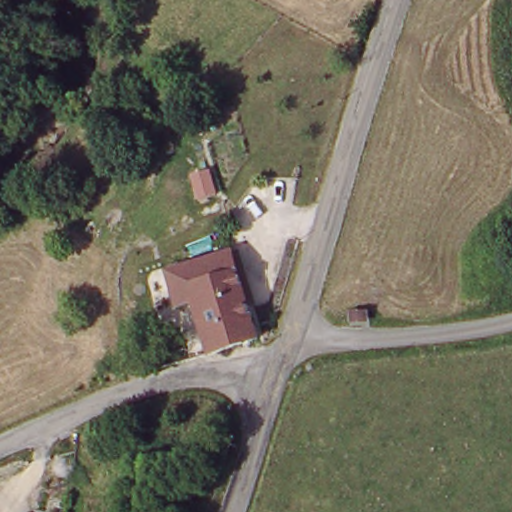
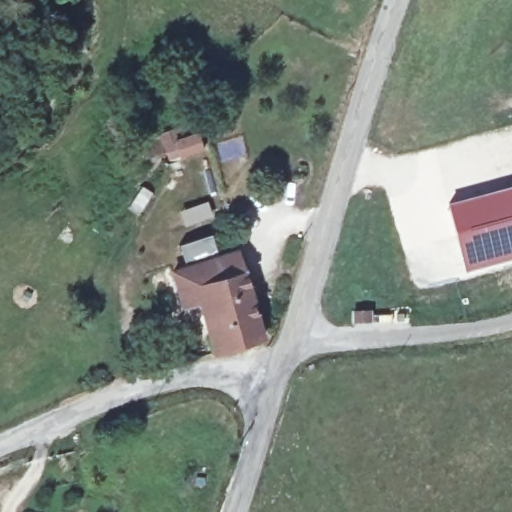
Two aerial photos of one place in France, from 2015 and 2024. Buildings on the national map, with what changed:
new [(446,203),(512,185),(512,259),(464,272),(446,203)]
unchanged [(263,335),(220,347),(204,298),(181,304),(172,270),(227,254),(236,251),(263,335)]

